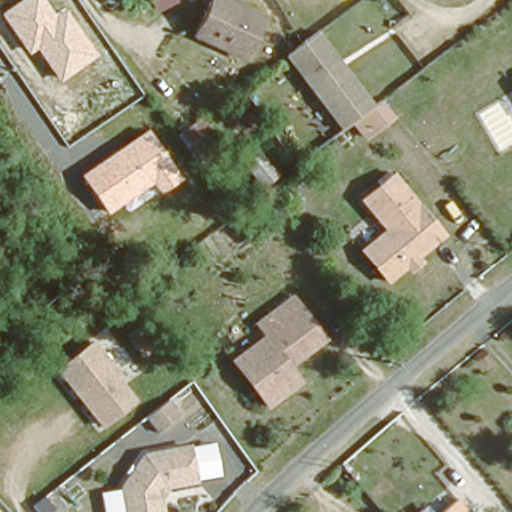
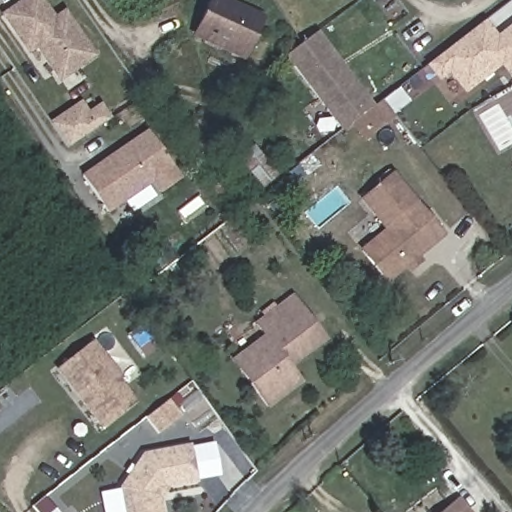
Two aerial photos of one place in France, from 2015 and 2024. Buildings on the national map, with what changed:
unchanged [(60,81),(36,50),(31,54),(3,14),(21,0),(45,0),(56,15),(64,9),(96,56),(60,81)]
unchanged [(243,59),(190,34),(205,0),(239,0),(264,13),(243,59)]
new [(500,65),(464,93),(449,74),(439,83),(426,65),(485,19),(497,35),(512,23),(512,73),(508,76),(500,65)]
unchanged [(365,140),(350,121),(339,129),(284,55),(318,30),(372,103),(380,97),(396,117),(365,140)]
demolished [(169,121),(147,92),(165,80),(186,109),(169,121)]
new [(101,103),(112,120),(67,148),(50,121),(82,100),(88,111),(101,103)]
unchanged [(183,178),(159,194),(151,183),(108,213),(82,174),(148,129),(183,178)]
unchanged [(259,191),(234,158),(253,143),(278,175),(259,191)]
unchanged [(406,269),(403,265),(382,280),(358,249),(383,229),(359,198),(390,173),(439,236),(412,257),(416,262),(406,269)]
unchanged [(293,367),(302,381),(267,410),(229,359),(263,335),(254,320),(292,292),(327,341),(293,367)]
unchanged [(102,428),(55,368),(94,338),(123,374),(119,378),(137,402),(102,428)]
new [(171,401),(182,416),(160,433),(149,419),(171,401)]
unchanged [(161,489),(162,512),(122,512),(119,484),(139,452),(191,442),(197,483),(161,489)]
unchanged [(471,512),(437,512),(458,495),(471,512)]

